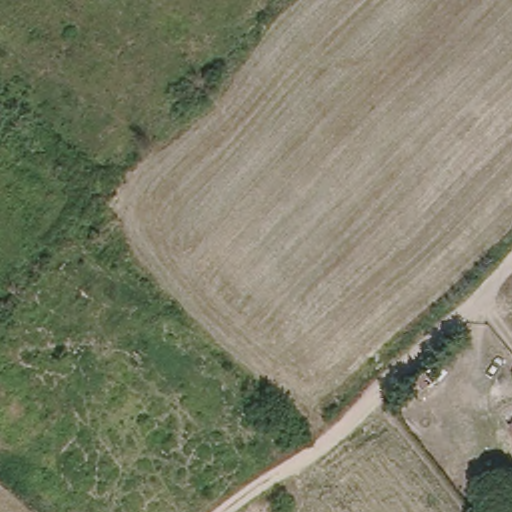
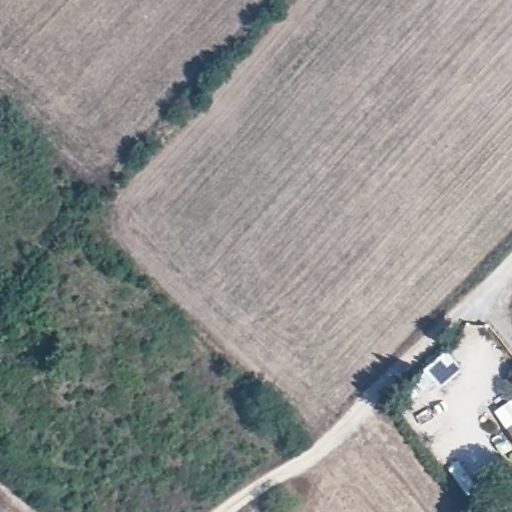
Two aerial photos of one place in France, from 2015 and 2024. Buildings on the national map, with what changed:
unchanged [(435,382),(425,390),(416,380),(427,371),(435,382)]
unchanged [(512,423),(512,427),(510,424),(512,423)]

